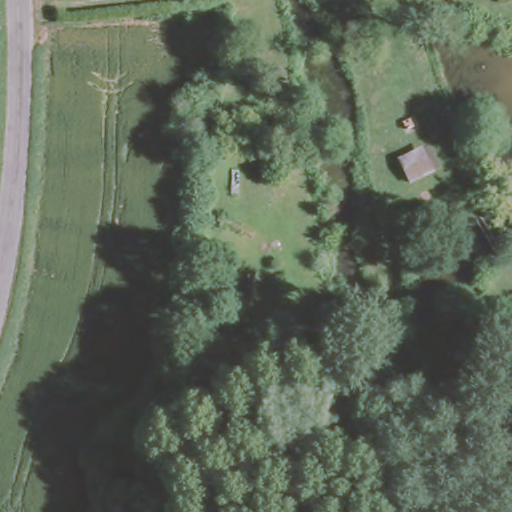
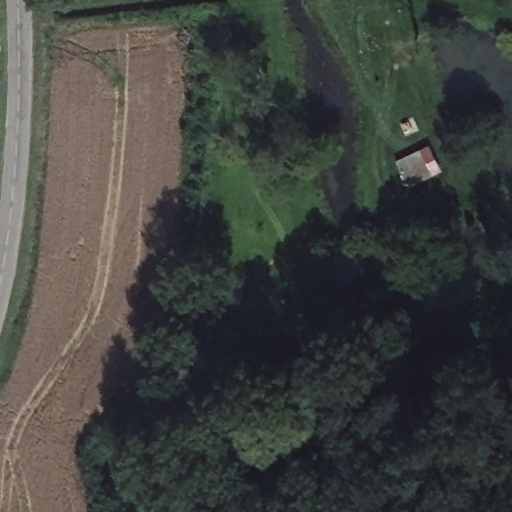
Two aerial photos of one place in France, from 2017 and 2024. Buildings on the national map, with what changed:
unchanged [(401,158),(428,146),(438,174),(413,184),(401,158)]

